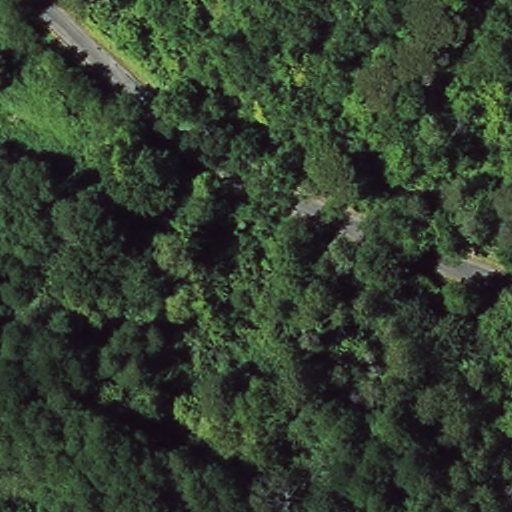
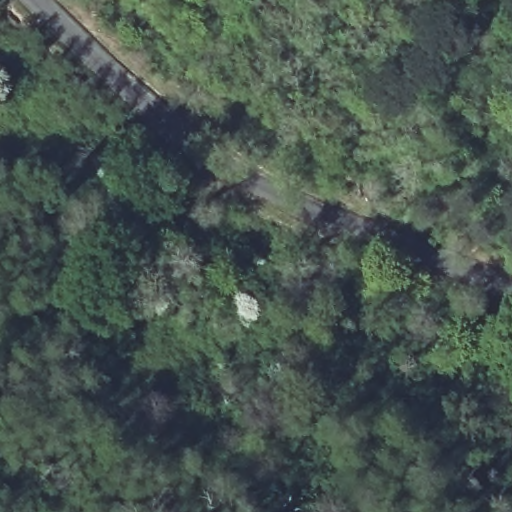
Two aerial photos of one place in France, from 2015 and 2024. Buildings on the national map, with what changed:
[]

